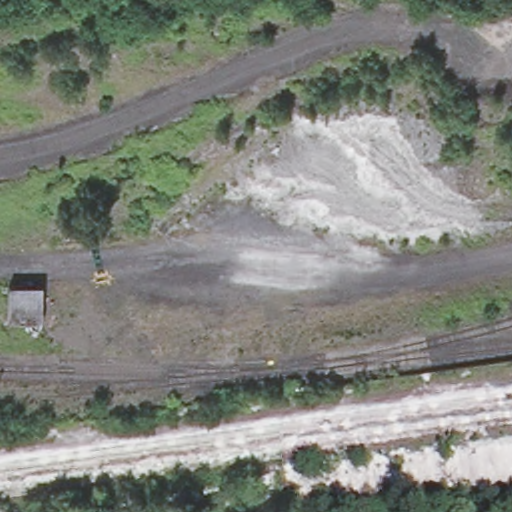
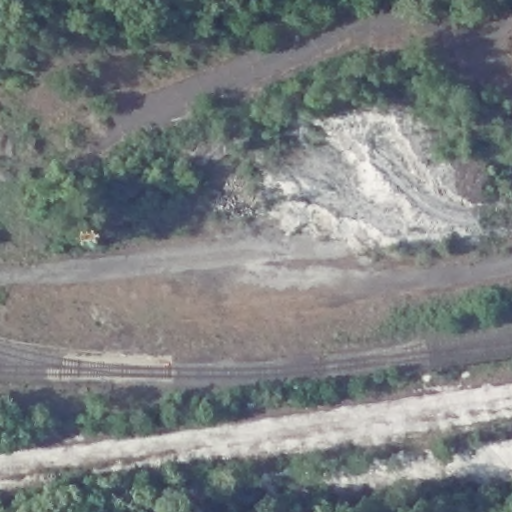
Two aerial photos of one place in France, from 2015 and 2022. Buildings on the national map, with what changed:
demolished [(37,319),(5,321),(5,302),(0,302),(0,288),(35,286),(37,319)]

